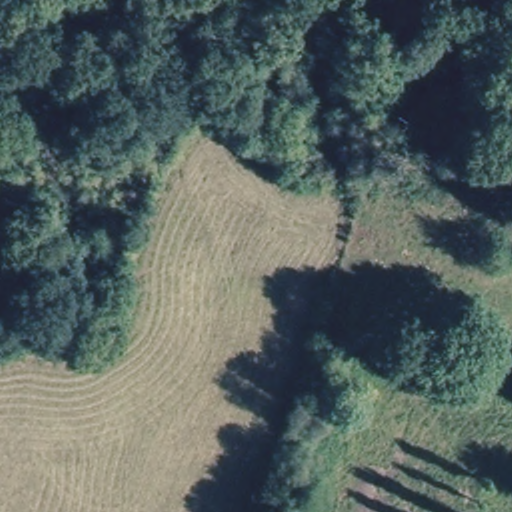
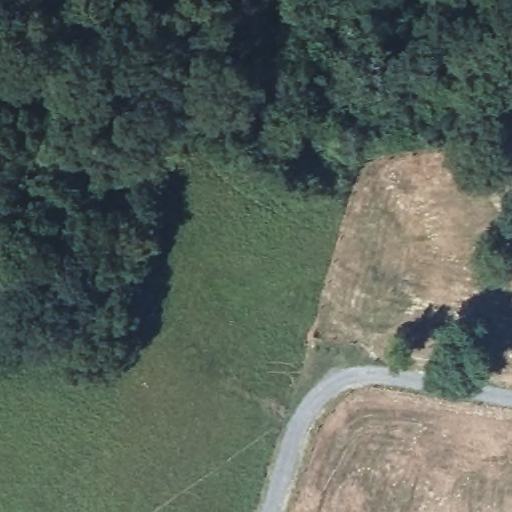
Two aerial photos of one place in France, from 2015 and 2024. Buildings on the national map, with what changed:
[]

